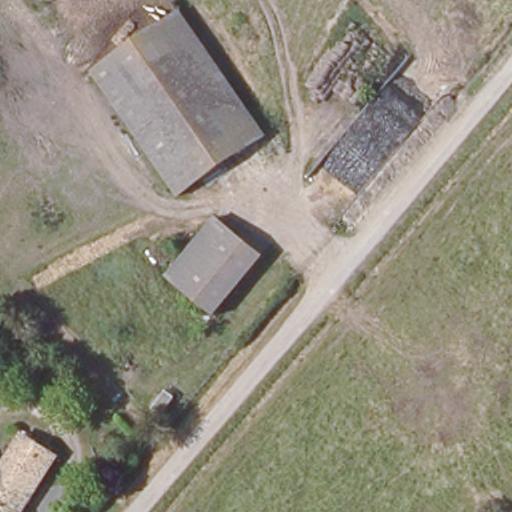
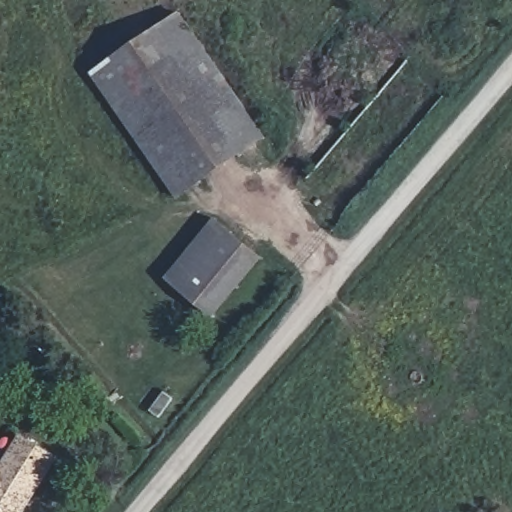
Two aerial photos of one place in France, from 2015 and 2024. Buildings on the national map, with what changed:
unchanged [(259,140),(184,201),(157,165),(95,83),(176,23),(259,140)]
unchanged [(209,227),(254,256),(214,315),(168,285),(209,227)]
unchanged [(26,512),(0,512),(0,468),(18,442),(56,467),(26,512)]

